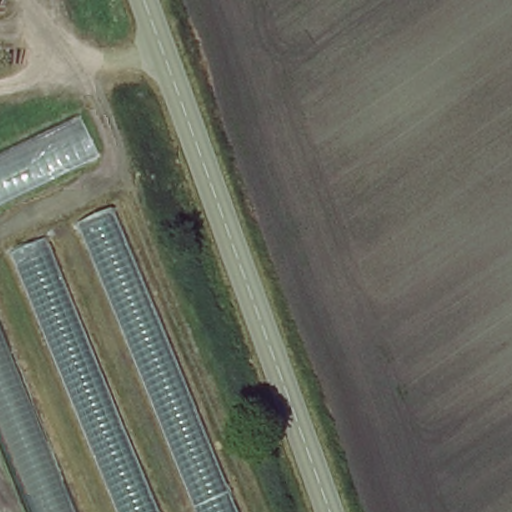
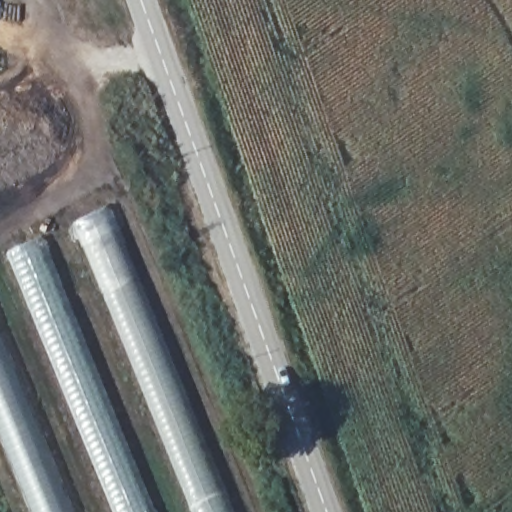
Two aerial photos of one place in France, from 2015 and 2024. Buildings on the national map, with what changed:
demolished [(85,118),(106,160),(0,209),(0,157),(85,118)]
unchanged [(193,512),(76,222),(108,208),(234,512),(193,512)]
unchanged [(114,512),(7,254),(42,239),(155,512),(114,512)]
unchanged [(34,512),(0,429),(0,336),(73,512),(34,512)]

